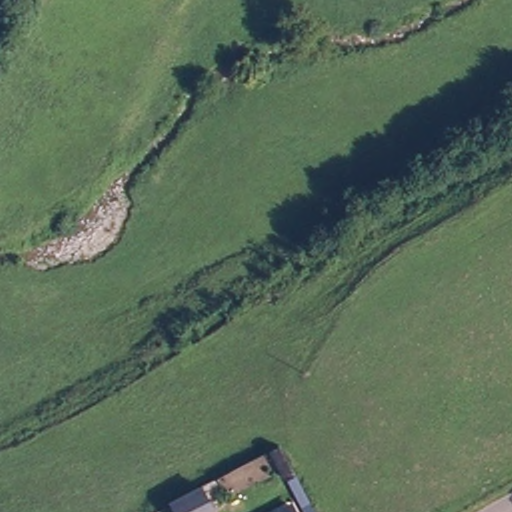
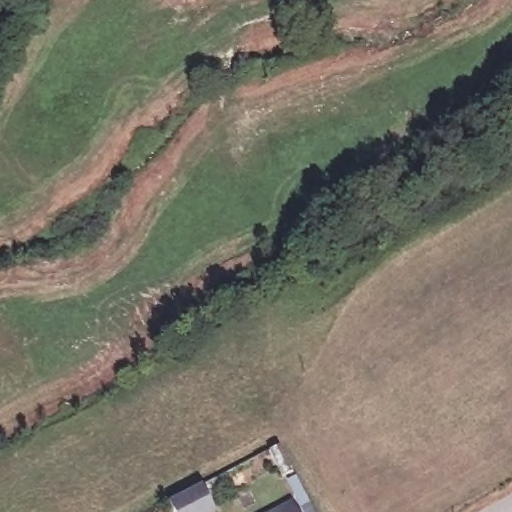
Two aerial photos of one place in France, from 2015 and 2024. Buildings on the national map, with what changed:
unchanged [(222,512),(186,512),(180,501),(191,495),(211,483),(215,490),(226,510),(222,512)]

